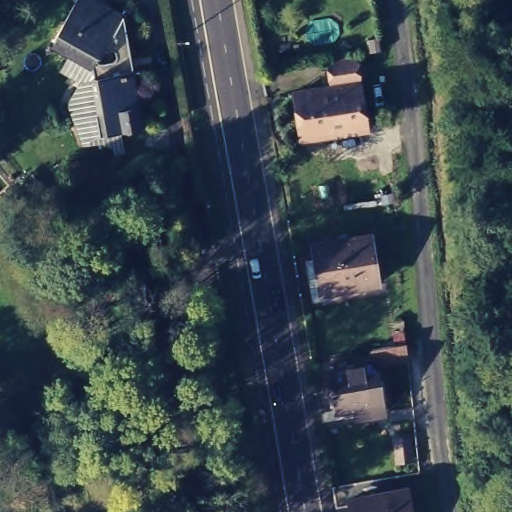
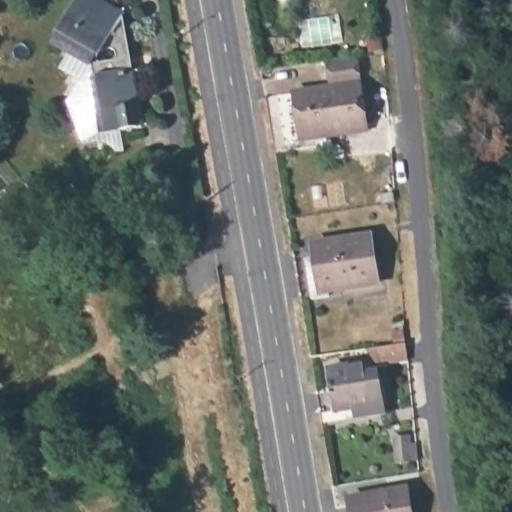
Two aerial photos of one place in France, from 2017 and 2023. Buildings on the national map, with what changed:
unchanged [(91,57),(54,33),(75,0),(104,0),(122,11),(91,57)]
unchanged [(367,124),(307,133),(298,87),(329,80),(327,59),(356,55),(367,124)]
unchanged [(130,73),(145,122),(85,138),(71,89),(130,73)]
unchanged [(352,277),(352,288),(317,292),(314,250),(325,249),(325,240),(377,233),(386,270),(352,277)]
unchanged [(385,360),(380,346),(417,339),(419,356),(385,360)]
unchanged [(370,406),(367,402),(337,405),(332,370),(369,364),(370,371),(379,373),(383,404),(370,406)]
unchanged [(349,492),(404,486),(407,512),(352,512),(349,492)]

